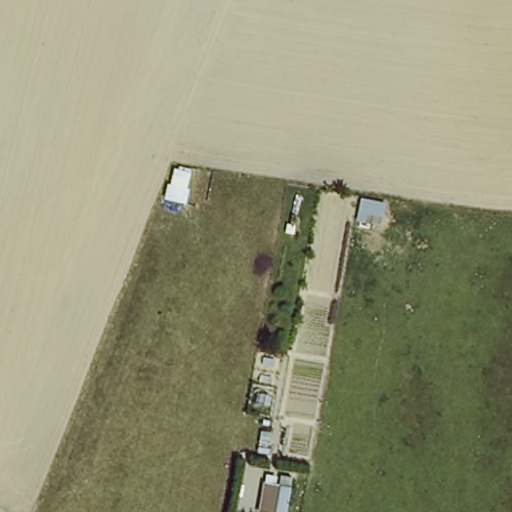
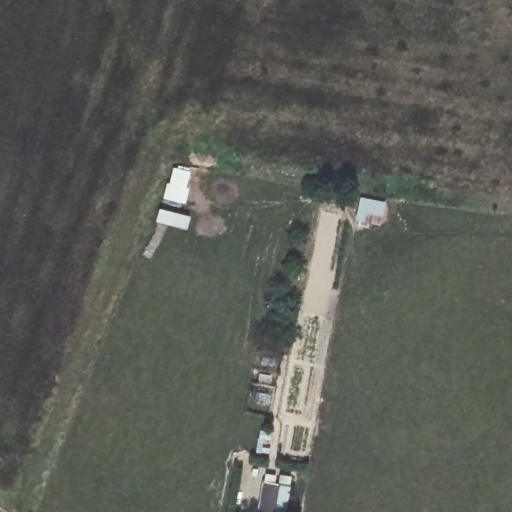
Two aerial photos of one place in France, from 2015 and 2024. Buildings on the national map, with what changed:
unchanged [(166,164),(185,168),(181,194),(160,193),(166,164)]
unchanged [(256,507),(261,481),(275,482),(276,469),(289,470),(282,511),(256,507)]

